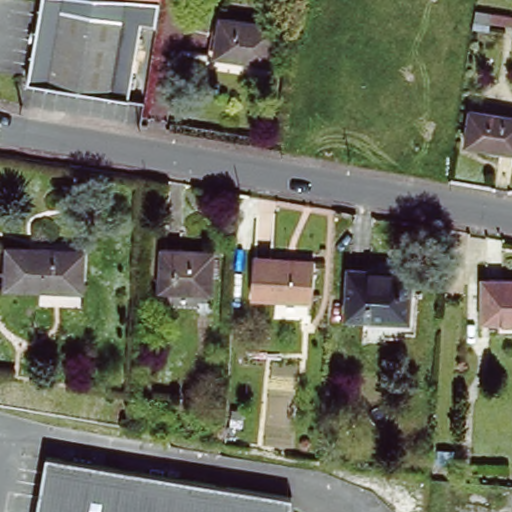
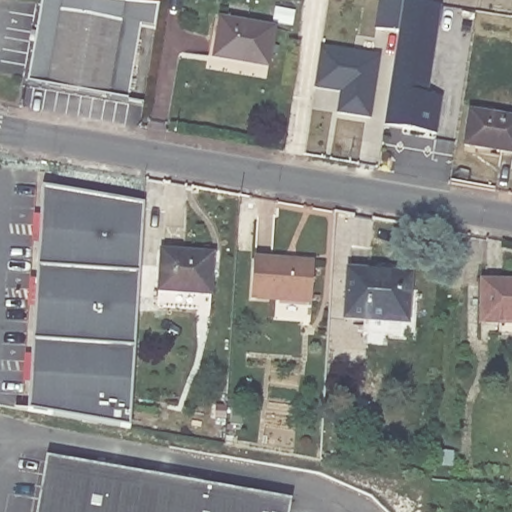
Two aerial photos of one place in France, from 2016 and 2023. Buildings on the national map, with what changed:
unchanged [(41,0),(158,0),(158,5),(154,27),(140,25),(127,98),(28,80),(41,0)]
new [(429,94),(444,96),(438,135),(386,126),(399,31),(374,26),(379,0),(408,0),(443,6),(429,94)]
unchanged [(279,26),(273,62),(218,52),(224,15),(279,26)]
new [(378,55),(380,55),(371,117),(336,113),(339,100),(314,97),(321,45),(353,50),(355,39),(379,42),(378,55)]
unchanged [(512,153),(464,145),(469,112),(512,119),(512,153)]
new [(131,427),(29,410),(43,186),(145,202),(131,427)]
demolished [(45,290),(6,287),(8,249),(47,251),(45,290)]
demolished [(54,251),(54,256),(83,258),(80,292),(45,290),(47,251),(54,251)]
unchanged [(163,251),(214,255),(211,296),(159,292),(163,251)]
unchanged [(255,255),(314,257),(311,296),(253,293),(255,255)]
unchanged [(349,271),(411,275),(408,320),(346,315),(349,271)]
unchanged [(512,278),(512,320),(483,320),(483,278),(512,278)]
unchanged [(291,498),(289,512),(36,512),(45,457),(291,498)]

